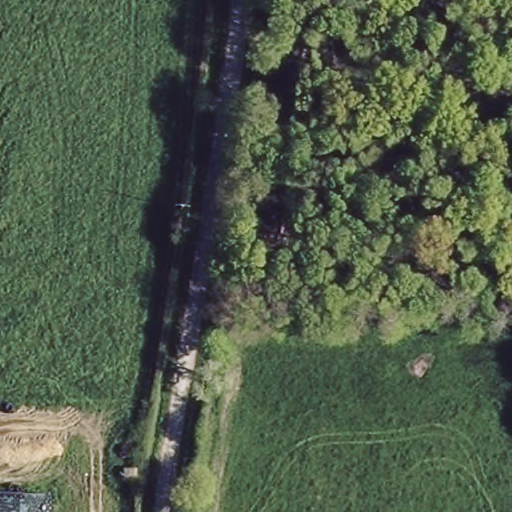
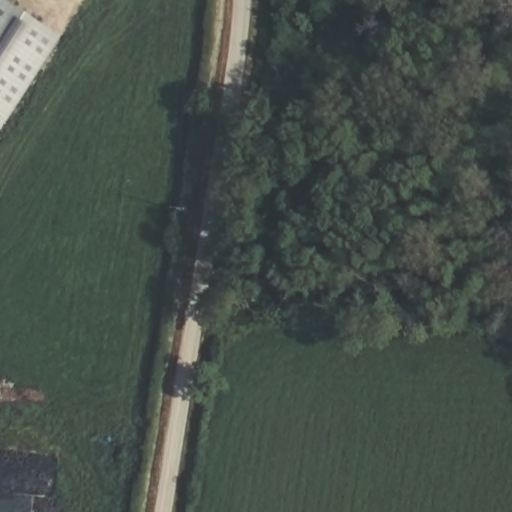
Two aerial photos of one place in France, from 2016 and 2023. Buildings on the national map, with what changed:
new [(0,0),(2,0),(60,37),(0,129),(0,0)]

